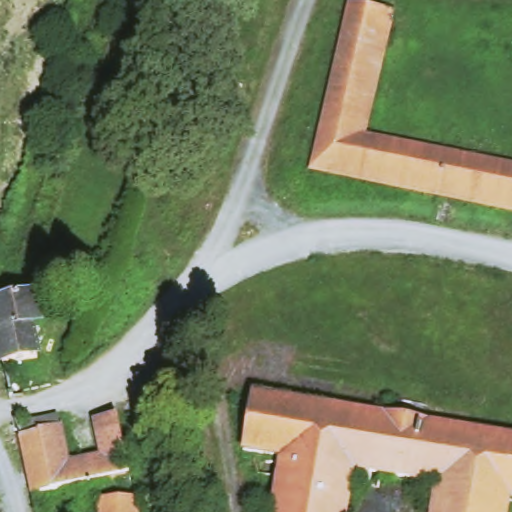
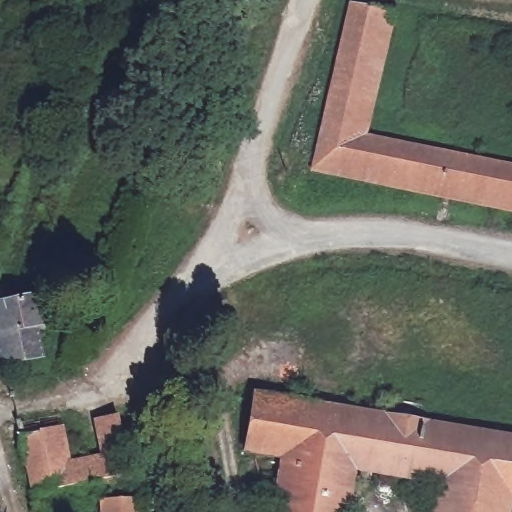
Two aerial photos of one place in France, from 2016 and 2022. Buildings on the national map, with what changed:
unchanged [(370,134),(512,164),(512,214),(312,173),(347,6),(395,15),(381,82),(370,134)]
unchanged [(13,297),(42,291),(50,328),(39,330),(45,359),(3,368),(0,353),(0,299),(13,297)]
unchanged [(512,436),(512,501),(510,512),(432,512),(436,487),(360,474),(353,512),(275,512),(283,462),(244,455),(255,392),(502,435),(512,436)]
unchanged [(63,425),(71,462),(100,455),(93,421),(120,414),(139,502),(139,512),(95,512),(95,496),(70,503),(70,487),(36,494),(15,431),(63,425)]

